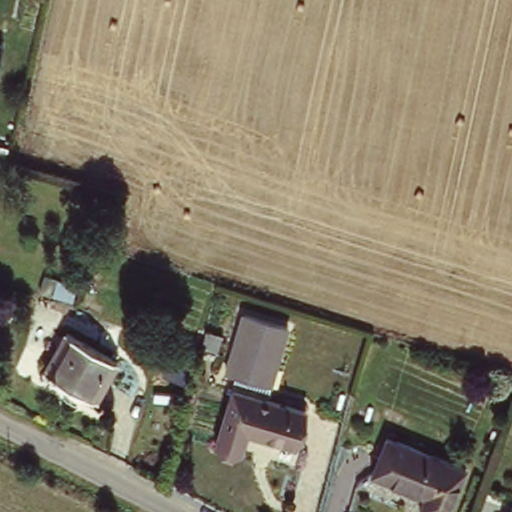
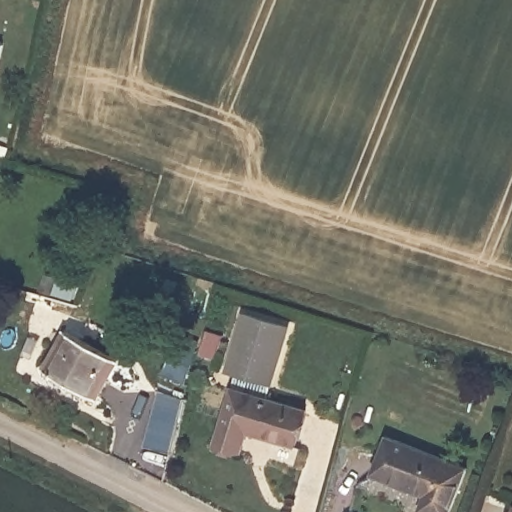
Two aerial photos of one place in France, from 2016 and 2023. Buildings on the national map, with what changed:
unchanged [(0,60),(0,41),(4,42),(0,60)]
unchanged [(226,372),(244,315),(293,329),(275,386),(226,372)]
unchanged [(118,353),(93,392),(44,363),(67,324),(118,353)]
unchanged [(307,407),(295,447),(249,433),(245,447),(219,440),(235,386),(307,407)]
new [(186,402),(174,456),(146,448),(161,395),(186,402)]
unchanged [(470,469),(453,512),(422,512),(419,511),(427,493),(377,471),(391,435),(470,469)]
unchanged [(512,505),(512,512),(509,512),(512,505)]

